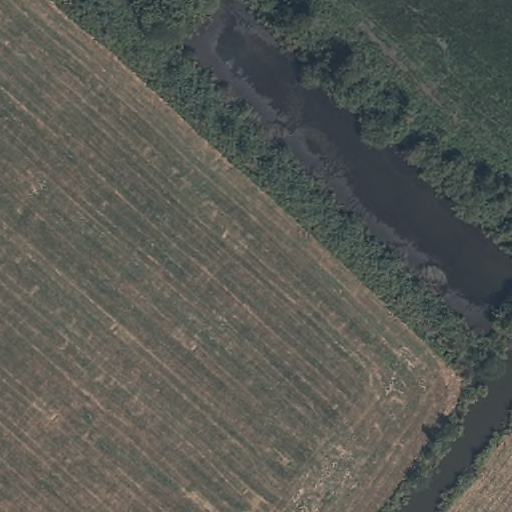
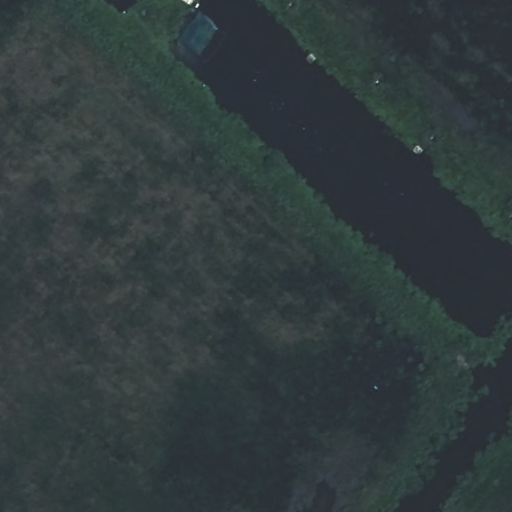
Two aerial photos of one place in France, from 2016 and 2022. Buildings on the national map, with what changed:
unchanged [(150,0),(164,0),(155,7),(150,0)]

